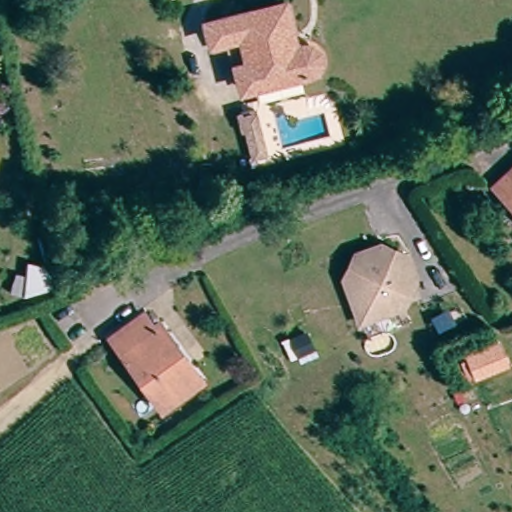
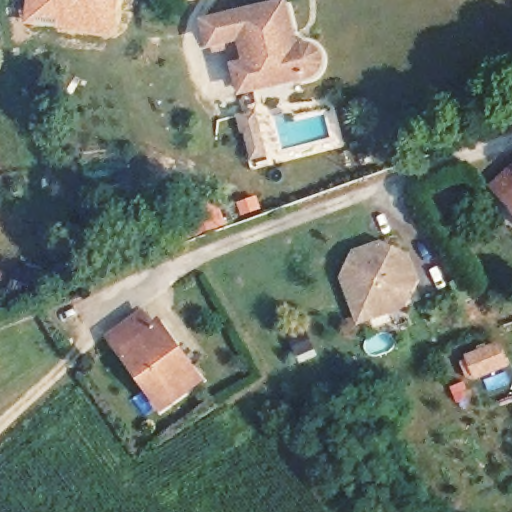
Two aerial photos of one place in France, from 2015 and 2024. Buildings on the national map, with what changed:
new [(26,0),(118,0),(113,37),(56,31),(56,25),(23,24),(26,0)]
unchanged [(322,53),(323,59),(323,65),(321,70),(314,73),(271,86),(259,88),(246,41),(228,46),(221,23),(290,4),(301,47),(307,45),(313,45),(319,49),(322,53)]
unchanged [(282,160),(266,165),(257,134),(274,129),(282,160)]
unchanged [(496,188),(512,171),(512,204),(496,188)]
unchanged [(383,247),(384,251),(403,259),(407,258),(417,285),(413,287),(405,304),(406,309),(362,325),(345,281),(349,280),(357,261),(356,257),(383,247)]
unchanged [(200,377),(202,380),(161,409),(156,401),(112,339),(146,315),(156,329),(163,324),(200,377)]
unchanged [(497,361),(469,369),(463,352),(463,350),(490,341),(497,361)]

